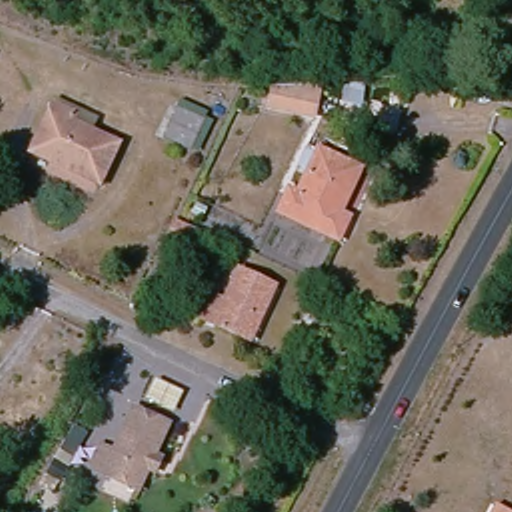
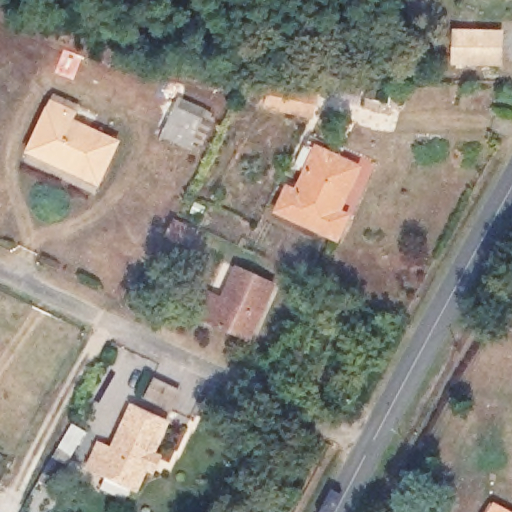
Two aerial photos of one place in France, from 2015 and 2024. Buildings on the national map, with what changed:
new [(453,28),(503,30),(502,67),(451,65),(453,28)]
unchanged [(312,118),(268,104),(268,86),(312,84),(312,118)]
unchanged [(71,124),(117,146),(100,185),(34,152),(54,108),(74,117),(71,124)]
unchanged [(199,124),(191,140),(168,129),(175,113),(199,124)]
unchanged [(359,168),(337,210),(346,215),(335,236),(279,208),(289,189),(297,192),(319,149),(359,168)]
unchanged [(238,335),(215,323),(202,315),(213,293),(226,300),(244,268),(280,288),(264,320),(252,343),(238,335)]
unchanged [(154,475),(146,471),(136,491),(104,475),(89,468),(99,450),(113,457),(140,404),(172,420),(154,456),(161,460),(154,475)]
unchanged [(43,451),(35,466),(19,458),(27,442),(43,451)]
unchanged [(512,511),(512,512),(495,512),(499,504),(512,511)]

